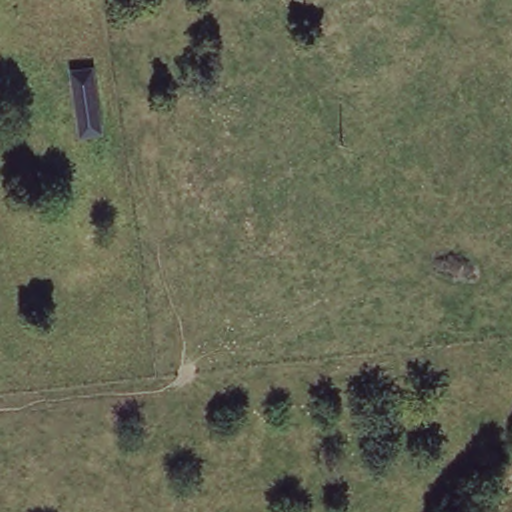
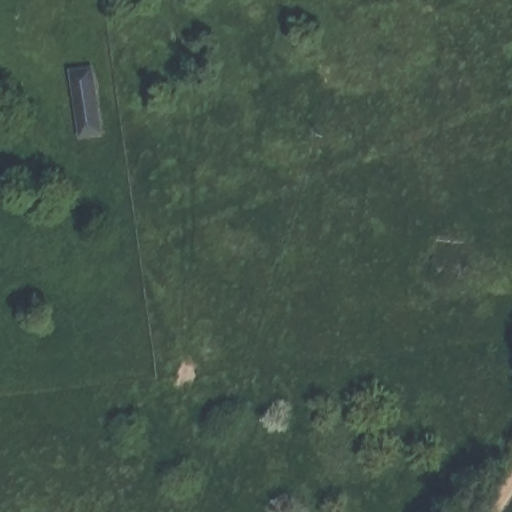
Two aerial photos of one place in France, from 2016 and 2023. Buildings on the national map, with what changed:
unchanged [(93,65),(104,134),(84,138),(70,70),(93,65)]

